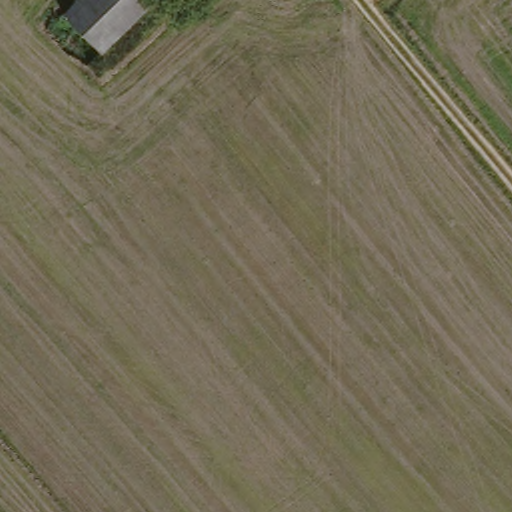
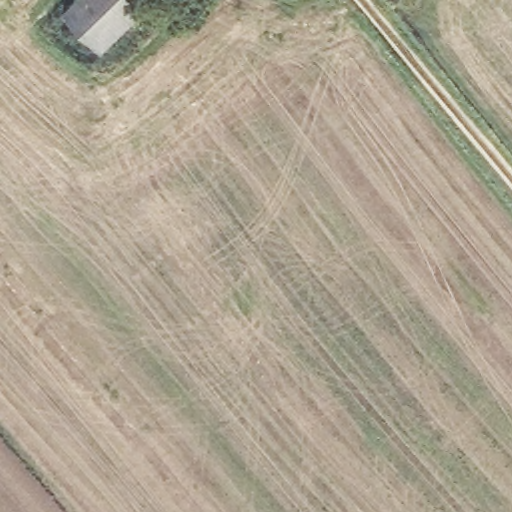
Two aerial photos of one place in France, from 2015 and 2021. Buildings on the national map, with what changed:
unchanged [(96,55),(61,19),(81,0),(158,0),(96,55)]

